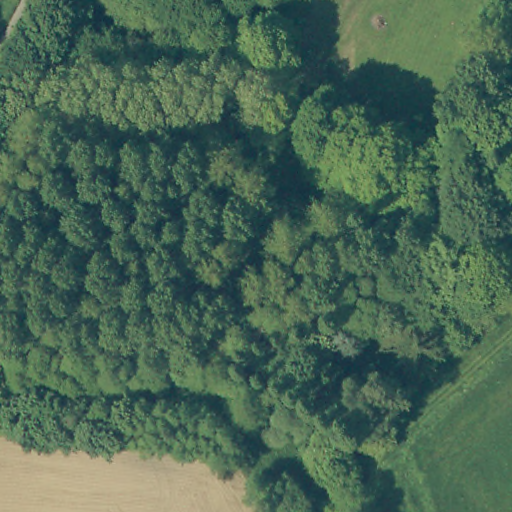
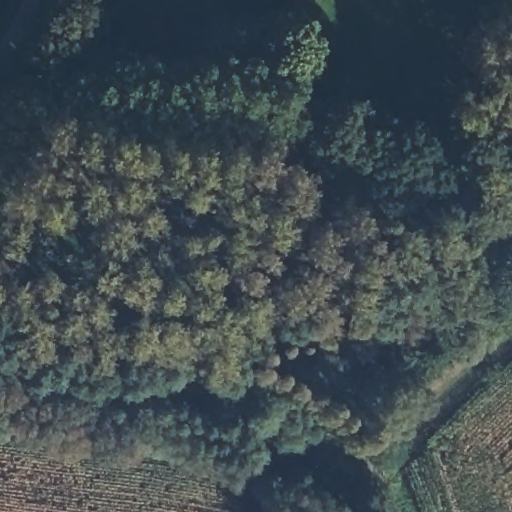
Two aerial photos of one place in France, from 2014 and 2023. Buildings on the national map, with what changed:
[]

